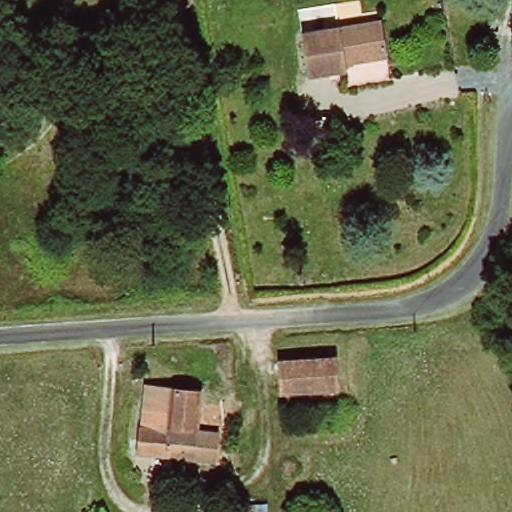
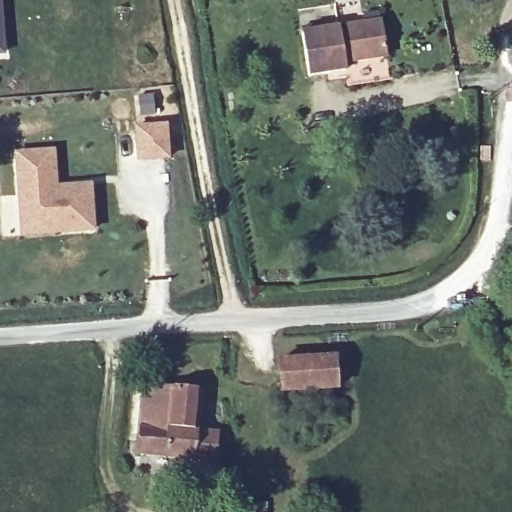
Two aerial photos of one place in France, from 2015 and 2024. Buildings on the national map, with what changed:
new [(3,54),(0,54),(0,12),(3,54)]
unchanged [(347,70),(310,75),(305,34),(383,23),(386,57),(346,62),(347,70)]
new [(167,125),(169,157),(140,158),(137,126),(167,125)]
new [(21,219),(18,154),(55,152),(56,189),(60,188),(77,187),(90,187),(94,231),(55,233),(22,235),(21,219)]
unchanged [(336,354),(337,390),(280,393),(278,358),(336,354)]
unchanged [(196,397),(193,436),(211,438),(208,463),(136,457),(143,392),(196,397)]
unchanged [(266,503),(266,512),(241,512),(241,505),(260,505),(266,503)]

